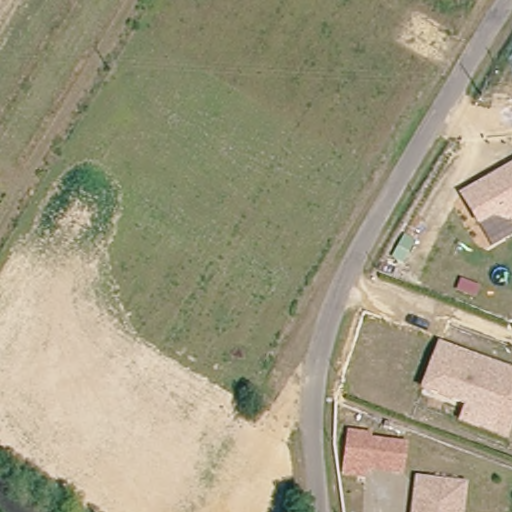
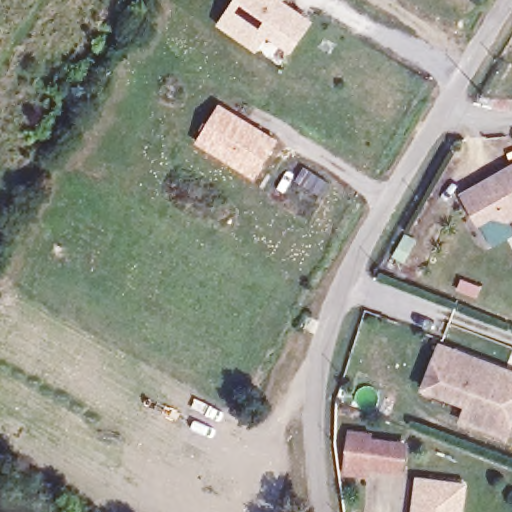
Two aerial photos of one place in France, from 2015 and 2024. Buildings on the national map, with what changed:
new [(290,48),(266,31),(255,46),(220,22),(235,0),(280,0),(309,20),(290,48)]
new [(194,144),(219,104),(277,139),(253,179),(194,144)]
unchanged [(512,221),(504,225),(499,217),(477,227),(459,192),(512,163),(512,221)]
unchanged [(512,372),(512,388),(500,417),(467,404),(423,387),(440,344),(512,372)]
unchanged [(512,388),(512,421),(506,437),(461,419),(467,404),(500,417),(512,388)]
unchanged [(340,475),(346,429),(372,432),(371,437),(406,442),(401,474),(367,471),(366,479),(340,475)]
unchanged [(423,479),(470,486),(467,512),(420,512),(423,479)]

